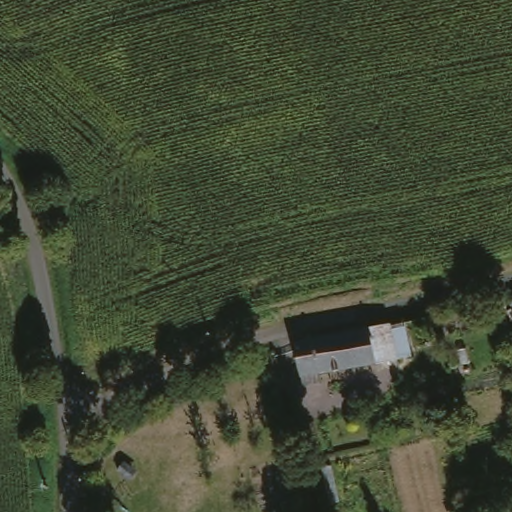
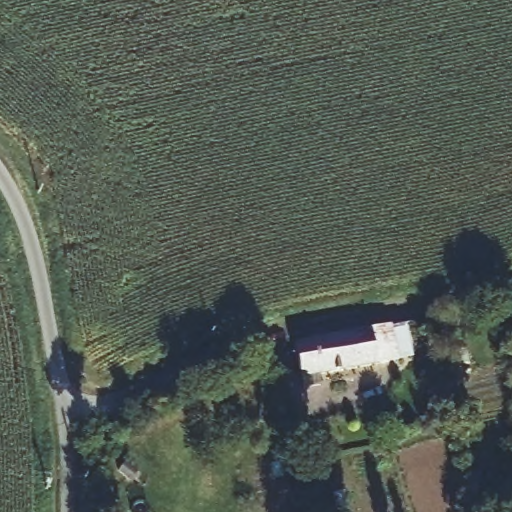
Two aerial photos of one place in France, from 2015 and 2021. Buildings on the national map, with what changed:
unchanged [(463,324),(422,332),(420,317),(460,308),(463,324)]
unchanged [(389,318),(391,324),(407,320),(416,348),(376,359),(367,323),(389,318)]
unchanged [(312,383),(308,370),(299,343),(309,338),(367,323),(376,359),(326,374),(328,379),(312,383)]

